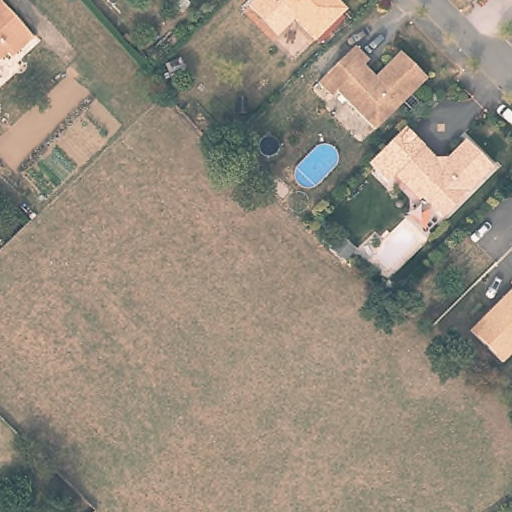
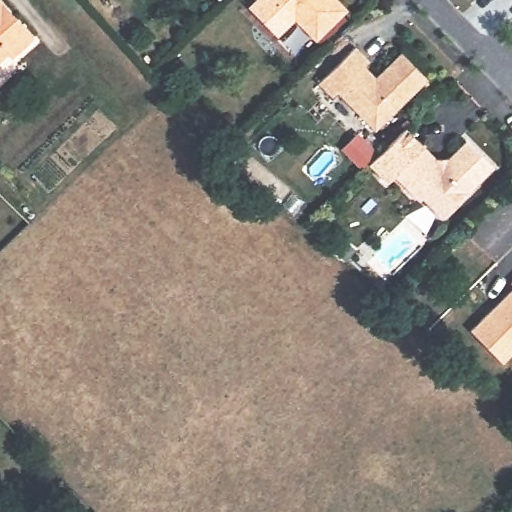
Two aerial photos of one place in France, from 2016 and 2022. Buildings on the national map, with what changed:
unchanged [(341,11),(310,41),(269,0),(331,0),(341,11)]
unchanged [(27,34),(6,55),(1,51),(0,52),(0,7),(27,34)]
unchanged [(370,60),(363,68),(377,73),(400,52),(426,77),(374,127),(339,90),(334,95),(321,81),(358,48),(370,60)]
unchanged [(400,128),(437,166),(462,142),(488,168),(437,218),(417,197),(412,202),(387,177),(382,182),(364,163),(400,128)]
unchanged [(512,281),(512,290),(507,286),(512,281)]
unchanged [(489,310),(492,314),(512,295),(512,350),(498,363),(469,330),(489,310)]

